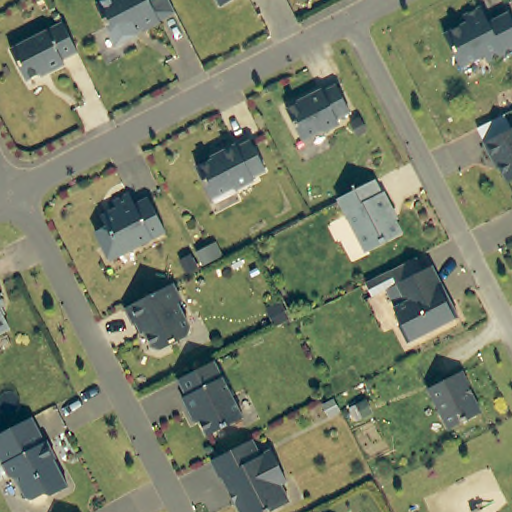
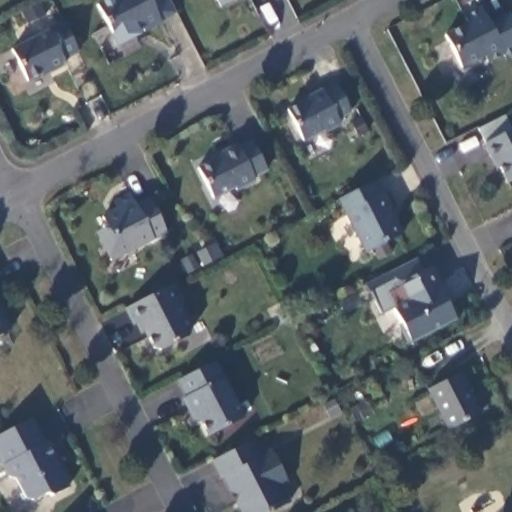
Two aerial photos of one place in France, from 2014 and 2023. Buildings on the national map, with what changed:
unchanged [(179,8),(162,16),(164,19),(145,28),(143,24),(136,27),(139,32),(120,41),(100,1),(102,0),(174,0),(179,8)]
unchanged [(226,3),(224,0),(233,0),(226,3)]
unchanged [(507,60),(491,68),(487,61),(465,73),(448,41),(471,29),(468,23),(485,14),(492,29),(512,19),(512,60),(508,62),(507,60)]
unchanged [(70,30),(80,48),(64,56),(66,60),(50,68),(50,66),(28,76),(11,43),(64,17),(70,30)]
unchanged [(351,115),(338,122),(341,127),(325,135),(325,133),(304,143),(288,112),(300,106),(299,105),(323,92),(325,95),(338,88),(351,115)]
unchanged [(501,164),(499,166),(486,141),(512,127),(512,179),(510,180),(501,164)]
unchanged [(267,172),(254,179),(255,182),(236,192),(235,189),(214,200),(198,170),(214,162),(212,159),(237,147),(239,150),(252,143),(267,172)]
unchanged [(383,193),(386,192),(394,208),(391,209),(404,233),(368,251),(341,197),(377,180),(383,193)]
unchanged [(107,228),(102,219),(117,211),(114,204),(130,196),(135,207),(149,200),(166,233),(111,262),(100,241),(96,234),(107,228)]
unchanged [(443,285),(440,287),(448,304),(451,302),(459,318),(407,343),(399,325),(402,323),(395,307),(396,306),(388,289),(375,295),(368,281),(418,257),(425,271),(434,266),(443,285)]
unchanged [(174,287),(183,305),(179,307),(191,332),(189,339),(160,353),(154,350),(140,324),(135,327),(126,311),(174,287)]
unchanged [(1,292),(10,309),(3,312),(15,334),(0,341),(0,292),(1,292)]
unchanged [(239,420),(204,438),(191,416),(187,418),(178,401),(182,399),(174,382),(210,364),(239,420)]
unchanged [(470,385),(468,386),(482,412),(450,428),(430,387),(463,371),(470,385)]
unchanged [(40,432),(47,445),(49,444),(59,461),(56,462),(70,490),(54,498),(46,496),(35,502),(27,500),(17,481),(11,479),(0,458),(0,438),(34,420),(40,432)]
unchanged [(266,454),(281,485),(275,488),(284,506),(272,512),(234,512),(231,506),(232,503),(229,497),(225,496),(217,480),(215,481),(207,464),(246,444),(255,460),(266,454)]

